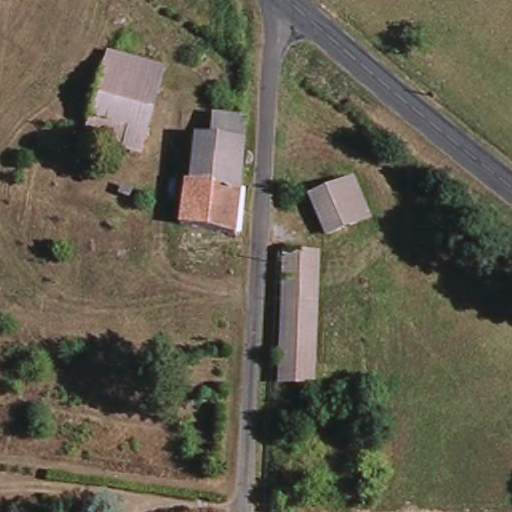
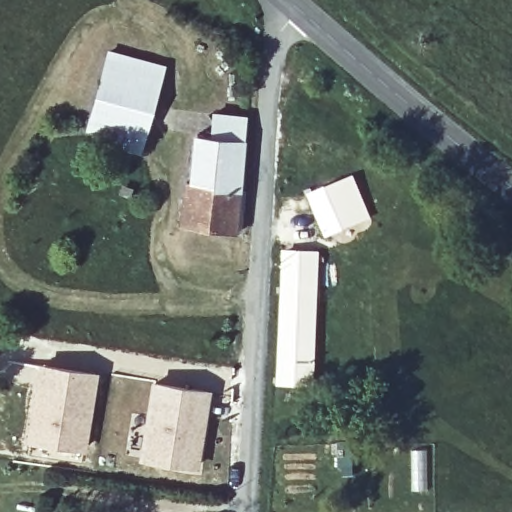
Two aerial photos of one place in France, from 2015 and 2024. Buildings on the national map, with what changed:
unchanged [(207,66),(193,58),(204,42),(219,47),(207,66)]
unchanged [(100,132),(101,127),(81,122),(101,48),(159,63),(135,146),(118,142),(120,137),(100,132)]
unchanged [(180,229),(184,187),(190,187),(194,134),(210,135),(212,115),(242,116),(232,234),(180,229)]
unchanged [(302,191),(332,177),(345,173),(363,215),(351,222),(320,235),(302,191)]
unchanged [(273,381),(278,255),(315,256),(309,383),(273,381)]
new [(87,450),(27,441),(40,363),(98,371),(87,450)]
new [(200,468),(139,460),(150,379),(212,390),(200,468)]

